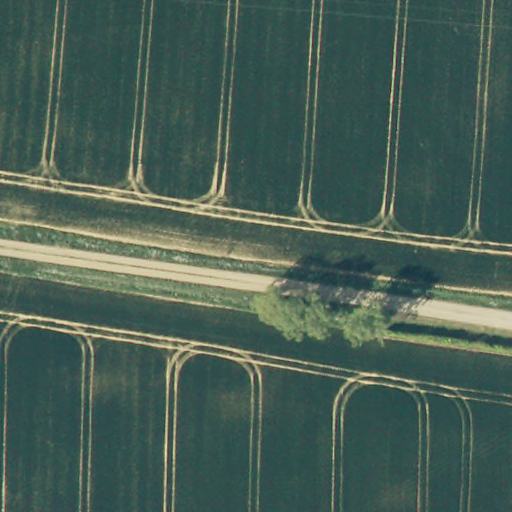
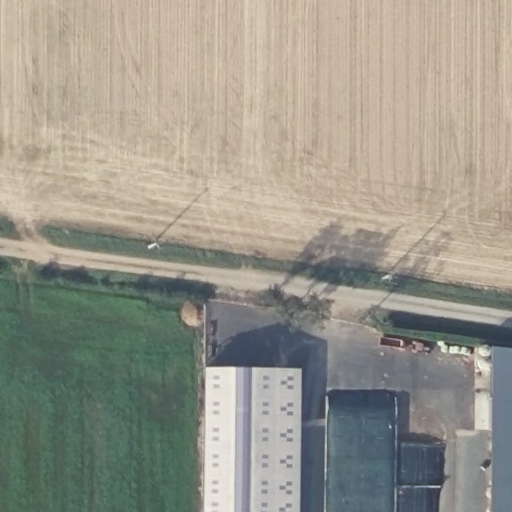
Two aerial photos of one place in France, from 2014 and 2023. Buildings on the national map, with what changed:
new [(200,369),(297,371),(296,512),(200,512),(200,369)]
new [(487,396),(512,396),(512,512),(486,512),(487,396)]

